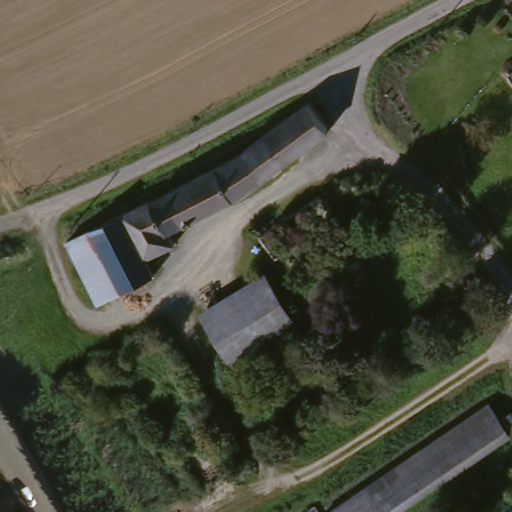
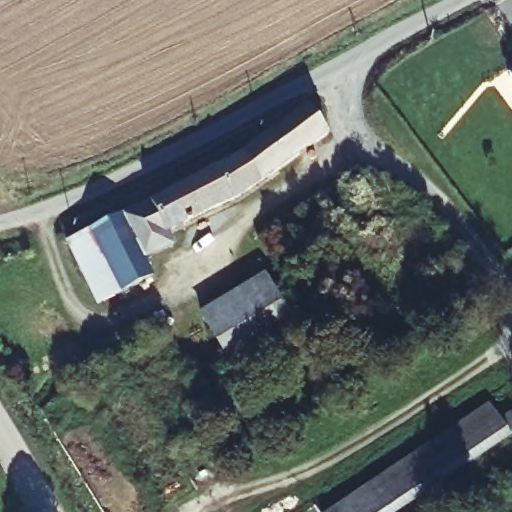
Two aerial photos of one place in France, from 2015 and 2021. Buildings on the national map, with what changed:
unchanged [(512,84),(507,77),(512,74),(512,84)]
unchanged [(319,137),(286,161),(256,182),(235,195),(211,208),(156,236),(163,252),(136,267),(110,221),(224,161),(298,109),(319,137)]
unchanged [(110,221),(136,267),(145,284),(114,299),(97,307),(65,239),(81,230),(110,221)]
unchanged [(202,323),(265,283),(277,301),(296,330),(233,371),(215,343),(202,323)]
unchanged [(507,411),(512,418),(512,430),(506,435),(392,512),(326,512),(485,403),(496,420),(507,411)]

